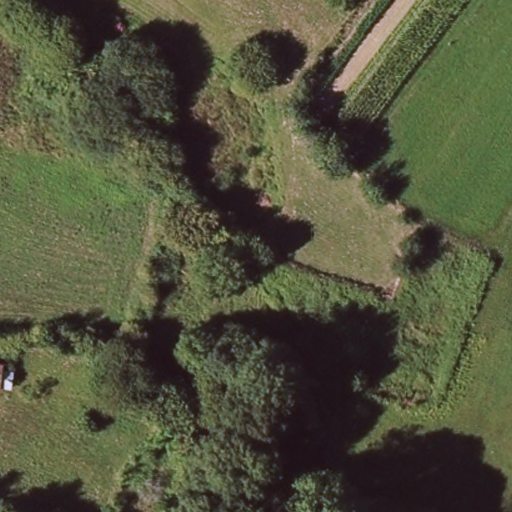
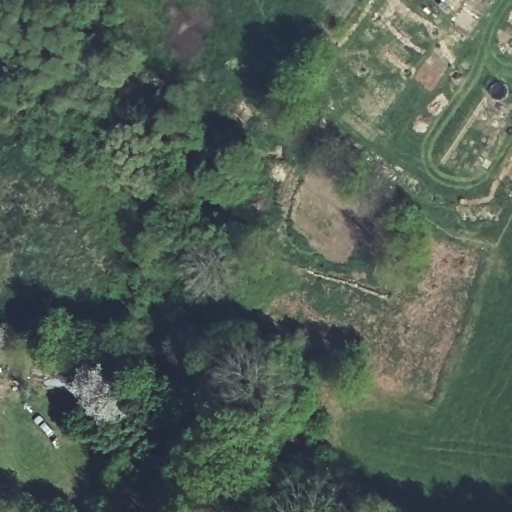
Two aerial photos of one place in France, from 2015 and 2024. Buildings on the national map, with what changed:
unchanged [(8,391),(0,389),(0,371),(14,372),(8,391)]

